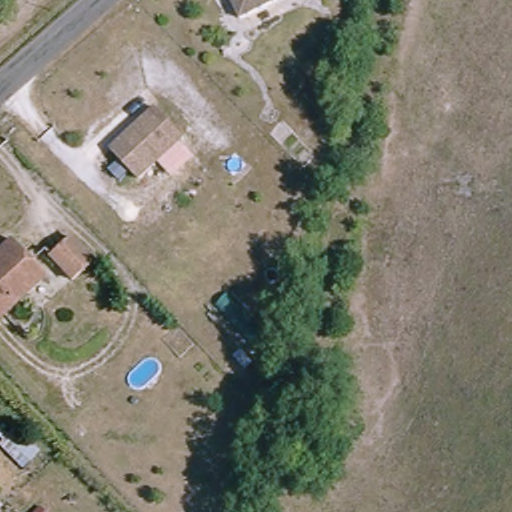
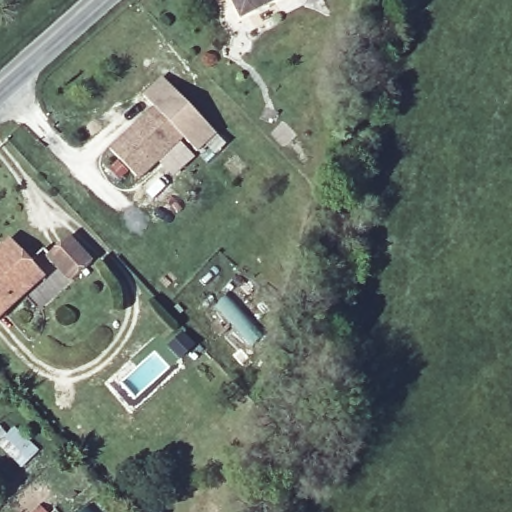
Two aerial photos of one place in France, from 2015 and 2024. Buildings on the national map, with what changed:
unchanged [(242,23),(231,0),(290,0),(242,23)]
new [(184,138),(156,107),(144,94),(163,77),(217,134),(197,152),(184,138)]
unchanged [(110,149),(156,107),(184,138),(139,180),(110,149)]
unchanged [(10,244),(42,280),(0,317),(0,253),(10,244)]
unchanged [(70,281),(52,260),(69,245),(87,266),(70,281)]

